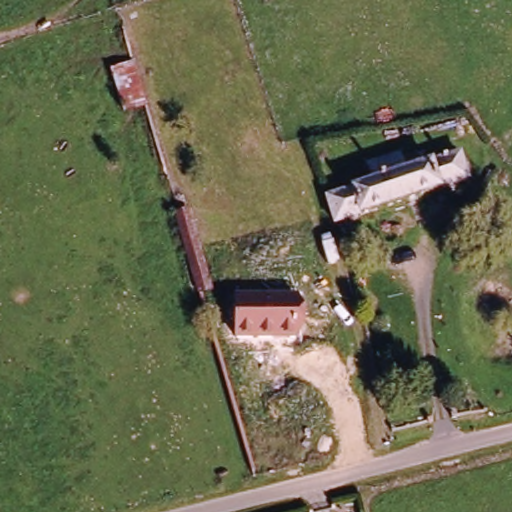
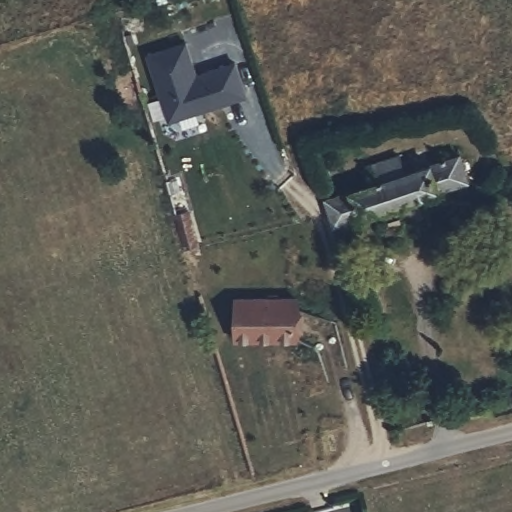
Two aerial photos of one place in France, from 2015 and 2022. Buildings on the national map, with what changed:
new [(190,44),(200,78),(239,65),(249,99),(222,107),(222,105),(172,121),(152,56),(190,44)]
unchanged [(147,104),(120,113),(105,66),(132,59),(147,104)]
unchanged [(468,182),(335,225),(327,197),(375,180),(372,166),(401,159),(406,171),(460,153),(468,182)]
unchanged [(179,206),(194,202),(217,284),(202,289),(179,206)]
unchanged [(297,295),(305,307),(304,327),(295,342),(235,340),(236,296),(297,295)]

